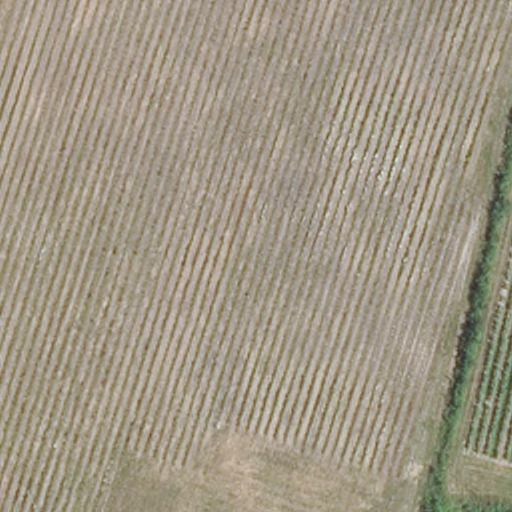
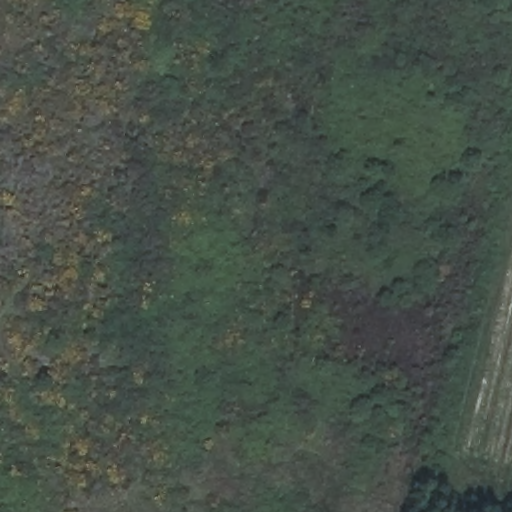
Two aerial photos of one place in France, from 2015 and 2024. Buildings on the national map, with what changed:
[]

